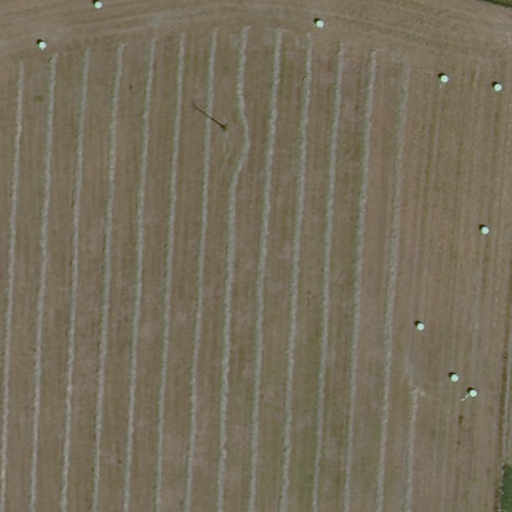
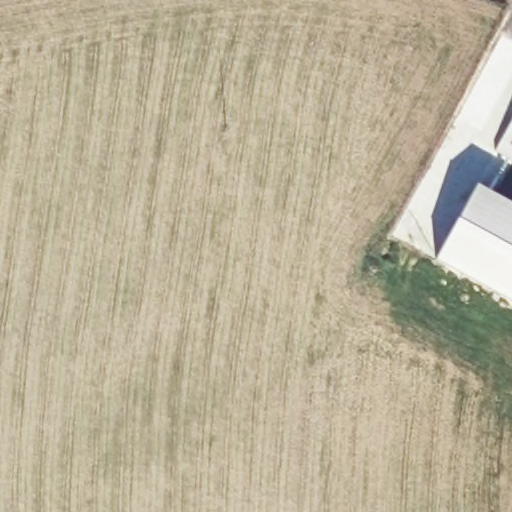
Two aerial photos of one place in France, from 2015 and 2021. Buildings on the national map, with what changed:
new [(512,118),(512,159),(495,150),(512,118)]
new [(512,205),(512,295),(439,256),(476,186),(512,205)]

